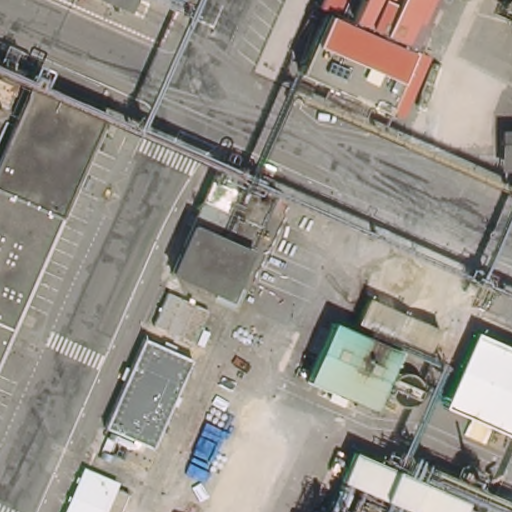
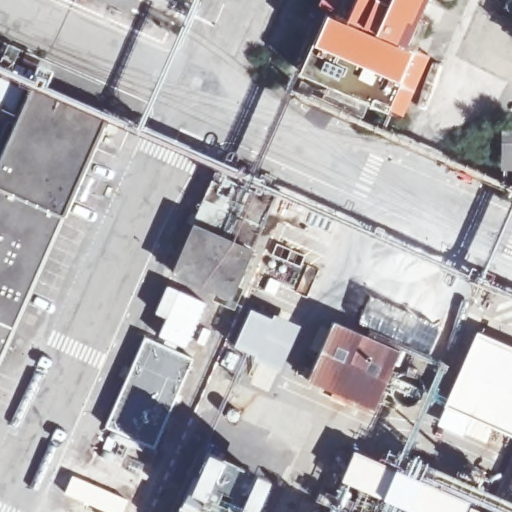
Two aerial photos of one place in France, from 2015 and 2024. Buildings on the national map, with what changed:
unchanged [(411,46),(385,105),(299,70),(329,0),(402,0),(388,37),(411,46)]
unchanged [(402,0),(432,0),(411,46),(388,37),(402,0)]
unchanged [(0,163),(35,83),(110,115),(0,357),(0,163)]
unchanged [(502,169),(500,130),(512,130),(512,169),(502,169)]
unchanged [(195,216),(253,242),(229,297),(171,273),(195,216)]
unchanged [(374,300),(443,331),(430,357),(405,345),(398,356),(356,335),(374,300)]
new [(250,306),(271,316),(273,311),(300,325),(278,370),(231,345),(250,306)]
unchanged [(356,335),(398,356),(371,412),(305,380),(332,323),(356,335)]
unchanged [(512,345),(512,441),(441,410),(476,330),(512,345)]
unchanged [(155,451),(103,431),(147,339),(193,360),(155,451)]
new [(204,445),(223,453),(240,462),(240,465),(234,476),(242,480),(250,465),(268,473),(257,503),(253,512),(230,512),(230,511),(218,504),(220,497),(218,496),(204,500),(200,507),(197,512),(174,512),(185,487),(204,445)]
unchanged [(380,459),(385,445),(424,460),(455,476),(463,464),(486,469),(465,512),(324,512),(326,510),(340,480),(353,446),(380,459)]
unchanged [(109,512),(67,512),(84,467),(121,481),(109,512)]

